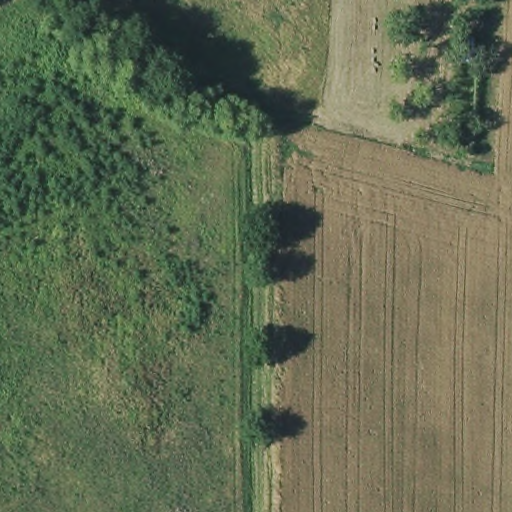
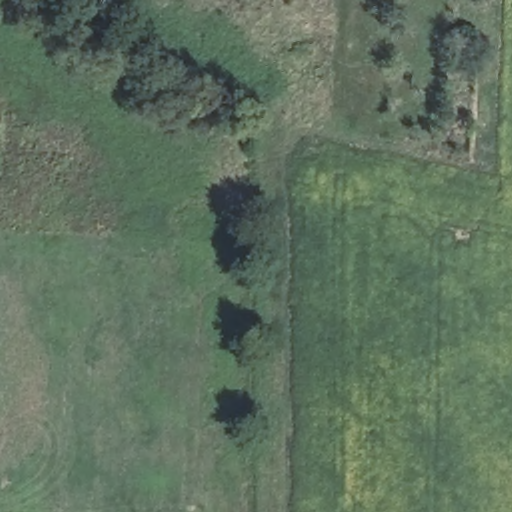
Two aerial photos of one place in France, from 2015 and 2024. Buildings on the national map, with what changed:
[]

